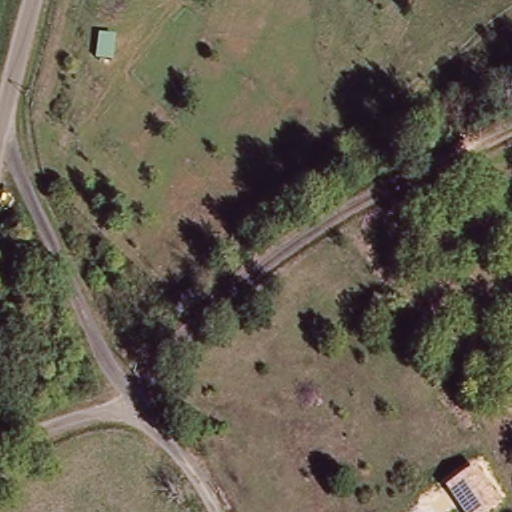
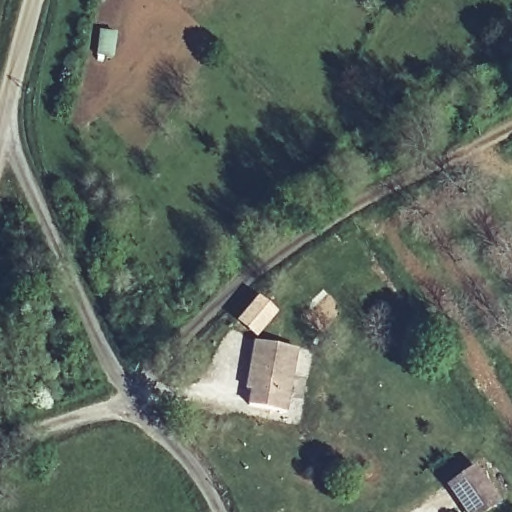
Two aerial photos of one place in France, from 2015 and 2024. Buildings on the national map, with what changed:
new [(300,350),(289,412),(248,405),(251,391),(246,390),(254,342),(300,350)]
unchanged [(481,512),(465,512),(449,487),(477,468),(498,501),(481,512)]

